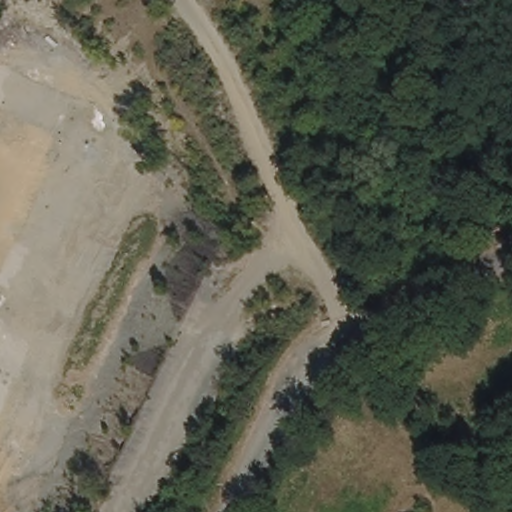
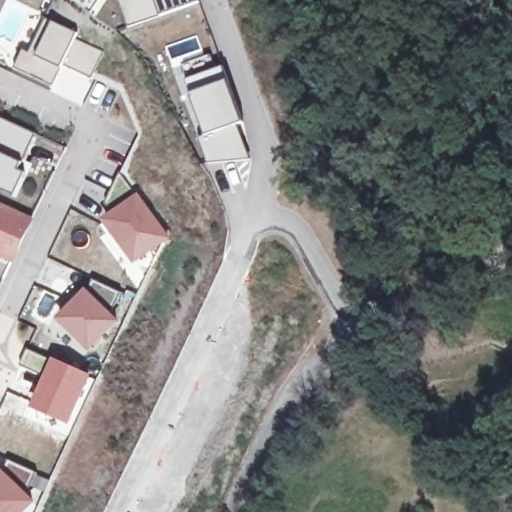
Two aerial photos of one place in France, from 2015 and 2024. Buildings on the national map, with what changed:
new [(120,0),(198,0),(200,4),(163,16),(130,28),(120,0)]
new [(42,23),(75,38),(73,43),(101,56),(89,82),(61,69),(51,91),(11,73),(20,54),(26,57),(42,23)]
new [(201,138),(208,135),(188,81),(224,68),(244,124),(240,125),(251,160),(210,164),(201,138)]
new [(39,130),(22,166),(15,163),(4,186),(0,184),(0,111),(39,130)]
new [(168,239),(137,260),(109,222),(116,216),(107,204),(121,175),(168,239)]
unchanged [(34,217),(16,255),(0,248),(0,201),(34,217)]
new [(87,287),(93,280),(121,292),(117,300),(111,310),(120,319),(88,351),(56,320),(87,287)]
new [(27,348),(90,373),(69,424),(31,408),(43,376),(19,364),(27,348)]
new [(0,512),(0,474),(4,471),(8,475),(11,462),(35,473),(26,493),(36,502),(25,512),(0,512)]

